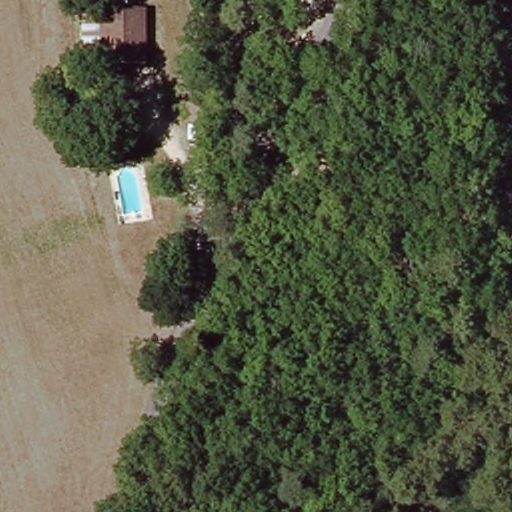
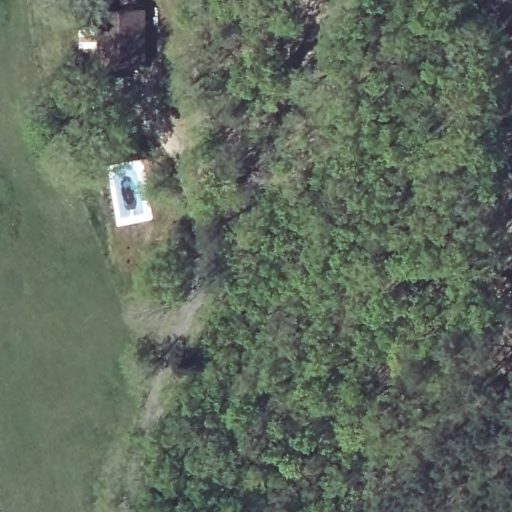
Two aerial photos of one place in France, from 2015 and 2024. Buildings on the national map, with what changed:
unchanged [(103,67),(100,15),(116,14),(142,13),(145,66),(117,67),(103,67)]

